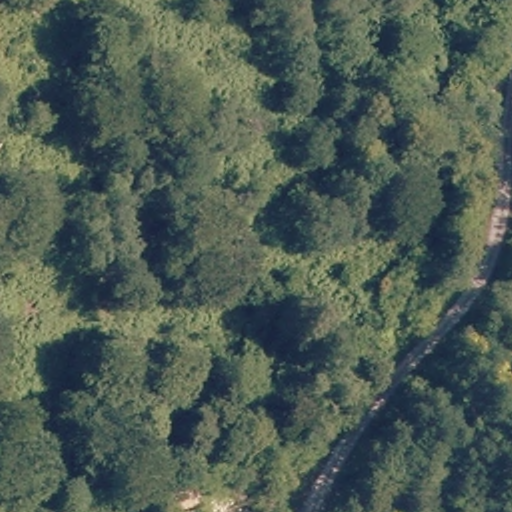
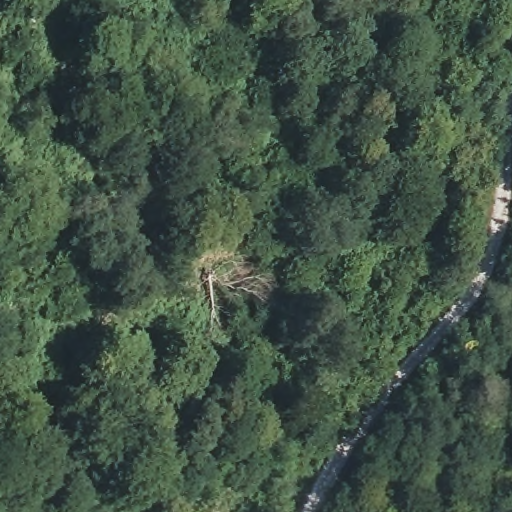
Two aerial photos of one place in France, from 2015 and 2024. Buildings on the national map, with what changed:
unchanged [(500,122),(469,121),(465,68),(503,69),(500,122)]

